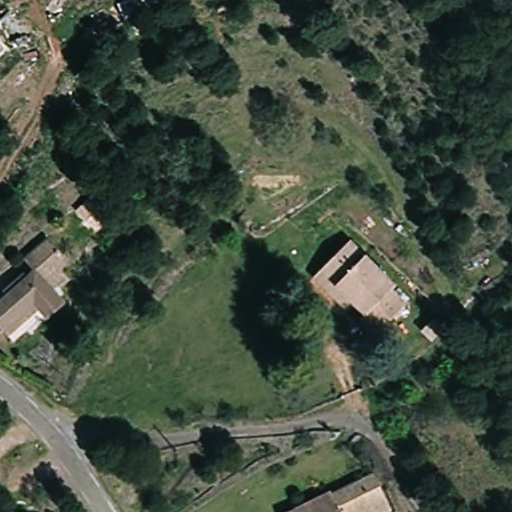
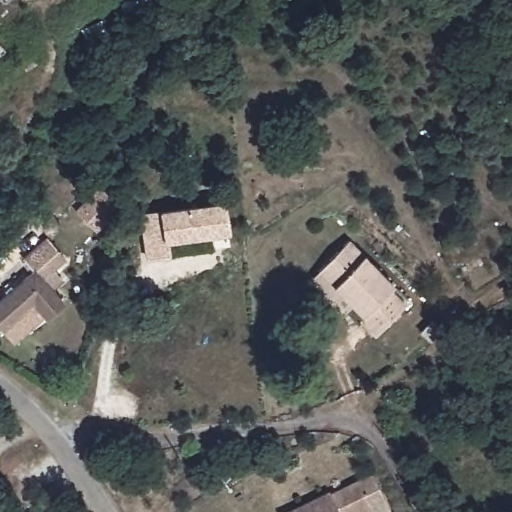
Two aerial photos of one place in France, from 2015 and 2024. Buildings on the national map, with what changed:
new [(0,59),(0,46),(7,54),(0,59)]
new [(95,233),(80,217),(76,214),(100,190),(104,193),(119,209),(95,233)]
new [(142,216),(225,207),(228,235),(166,242),(168,257),(147,260),(142,216)]
unchanged [(0,327),(0,301),(35,270),(24,258),(49,236),(66,255),(43,276),(66,301),(32,332),(18,345),(4,332),(0,327)]
unchanged [(352,239),(398,286),(390,293),(405,308),(372,341),(355,324),(362,319),(348,305),(317,273),(352,239)]
unchanged [(372,472),(391,506),(380,512),(372,512),(370,509),(364,512),(300,512),(372,472)]

